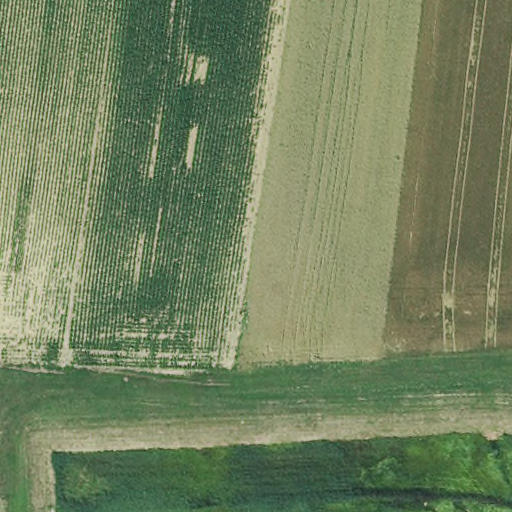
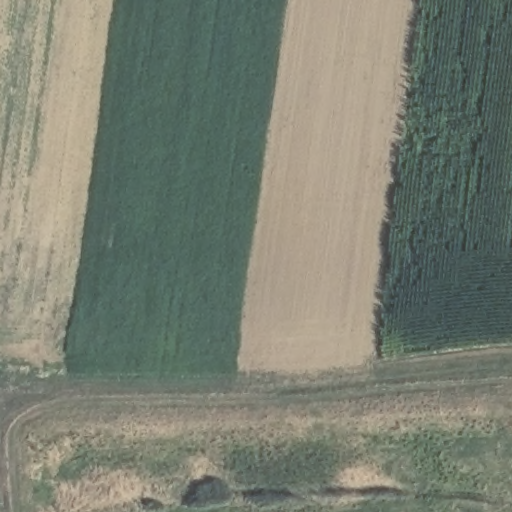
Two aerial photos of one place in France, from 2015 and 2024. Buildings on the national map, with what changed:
[]

